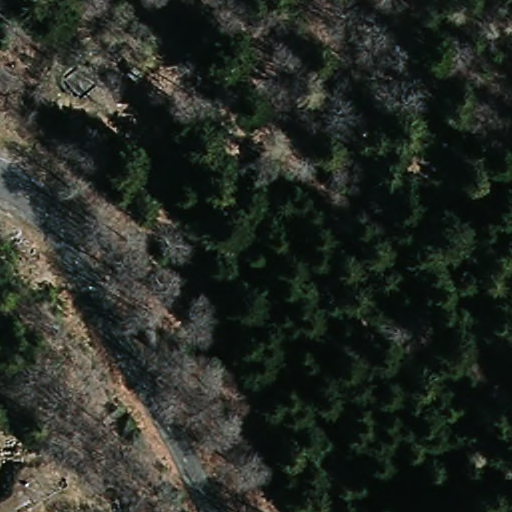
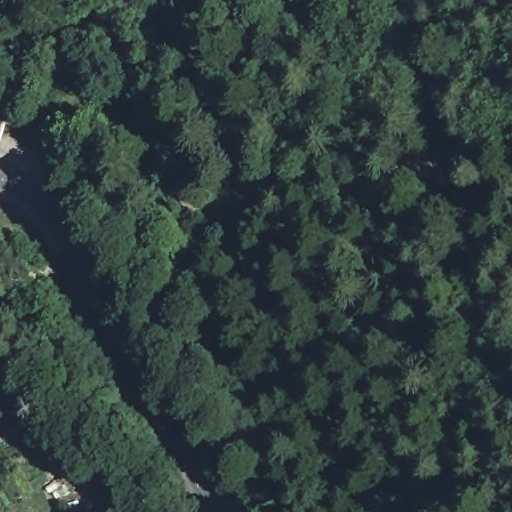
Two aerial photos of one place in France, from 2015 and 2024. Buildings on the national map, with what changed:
unchanged [(75,94),(58,75),(80,59),(97,79),(75,94)]

